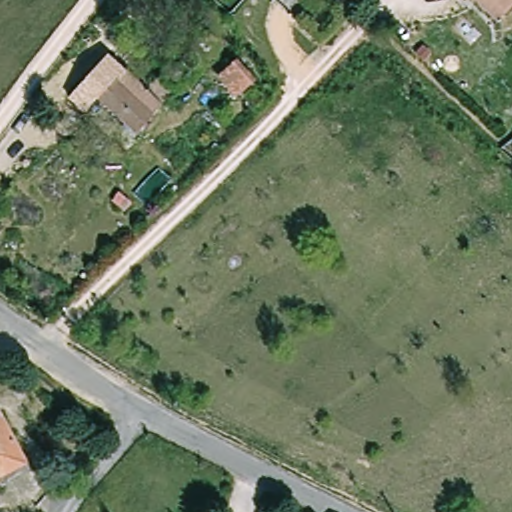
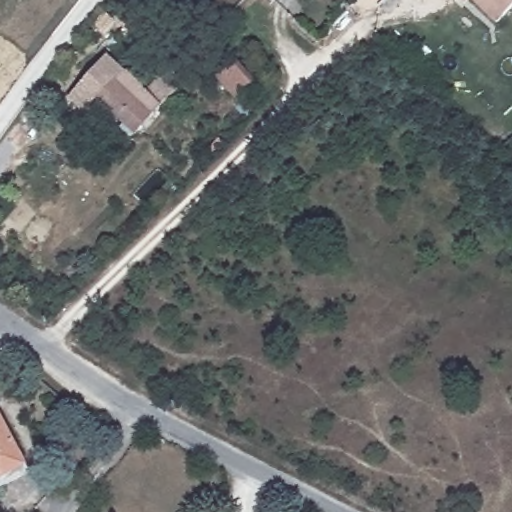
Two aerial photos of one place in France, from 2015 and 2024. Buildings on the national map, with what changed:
unchanged [(508,16),(500,24),(475,0),(512,0),(512,11),(508,16)]
unchanged [(110,57),(149,95),(166,78),(179,90),(136,134),(84,84),(110,57)]
unchanged [(117,188),(130,198),(124,207),(110,197),(117,188)]
unchanged [(2,490),(0,486),(0,416),(26,465),(31,475),(2,490)]

